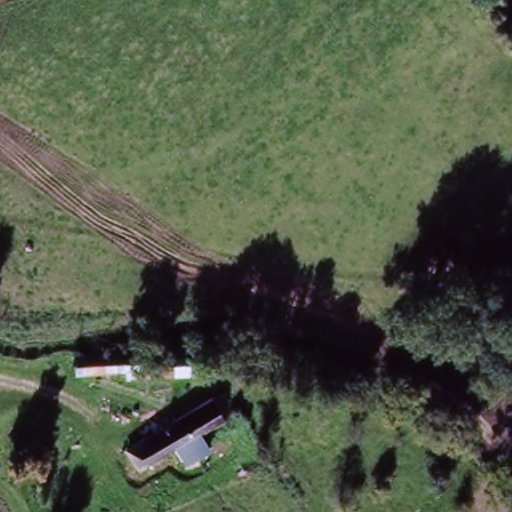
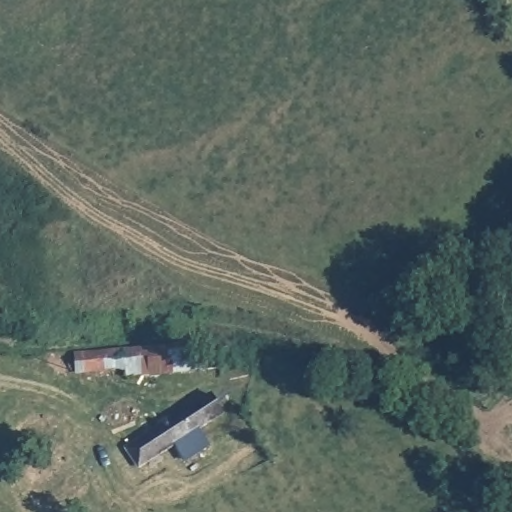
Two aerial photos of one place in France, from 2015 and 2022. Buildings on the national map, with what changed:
unchanged [(206,351),(207,357),(208,373),(177,373),(81,375),(81,360),(81,356),(107,355),(206,351)]
unchanged [(127,450),(207,395),(222,415),(140,470),(127,450)]

